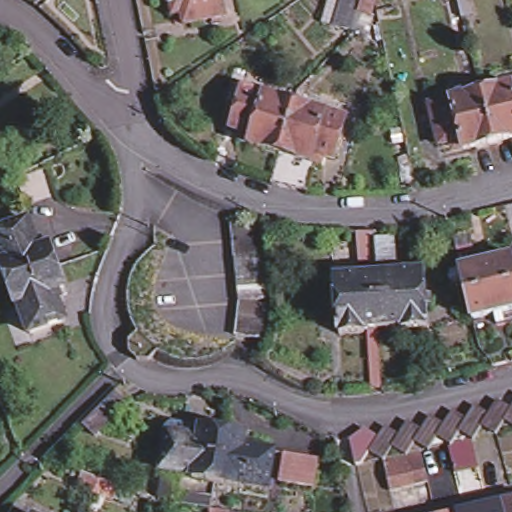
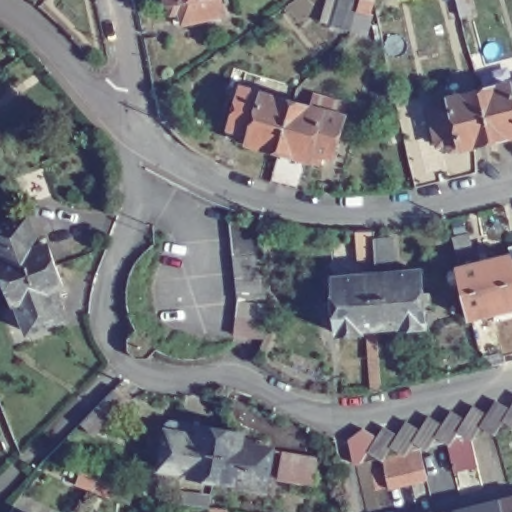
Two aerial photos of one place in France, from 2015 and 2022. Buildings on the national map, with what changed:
unchanged [(167,1),(166,0),(173,0),(167,1)]
unchanged [(222,12),(181,22),(176,0),(220,0),(222,12)]
unchanged [(352,34),(335,28),(345,0),(373,0),(372,3),(373,6),(370,16),(376,18),(369,39),(352,34)]
unchanged [(443,0),(466,0),(457,2),(445,5),(443,0)]
unchanged [(512,80),(512,133),(488,139),(475,89),(512,80)]
unchanged [(302,189),(287,184),(269,179),(277,152),(245,143),(248,133),(227,128),(237,86),(290,101),(340,115),(329,156),(308,150),(306,159),(310,161),(302,189)]
unchanged [(488,139),(458,147),(455,137),(435,143),(424,102),(475,89),(488,139)]
unchanged [(12,212),(22,241),(32,238),(40,259),(0,274),(0,216),(12,212)]
unchanged [(234,260),(232,241),(230,226),(262,222),(263,238),(265,256),(262,257),(262,272),(264,287),(265,302),(237,303),(237,290),(235,275),(234,260)]
unchanged [(468,237),(471,249),(457,252),(454,240),(468,237)]
unchanged [(360,340),(335,342),(329,288),(372,284),(372,269),(357,269),(355,239),(361,239),(372,238),(372,247),(390,247),(394,282),(418,279),(424,334),(399,337),(399,332),(379,335),(372,335),(360,337),(360,340)]
unchanged [(40,259),(47,279),(37,283),(47,314),(13,326),(2,296),(0,297),(0,274),(40,259)]
unchanged [(449,283),(450,279),(451,277),(460,275),(512,262),(512,264),(512,288),(466,300),(463,289),(455,291),(450,289),(450,286),(449,283)]
unchanged [(512,288),(512,315),(472,326),(466,300),(512,288)]
unchanged [(236,322),(237,305),(267,308),(266,324),(265,341),(244,338),(235,338),(236,322)]
unchanged [(127,333),(137,327),(149,329),(157,339),(157,352),(152,356),(148,361),(137,362),(125,355),(123,345),(127,333)]
unchanged [(130,404),(95,438),(84,427),(117,392),(130,404)]
unchanged [(425,428),(434,415),(447,423),(455,410),(470,419),(479,404),(492,412),(501,399),(512,406),(512,420),(509,418),(500,432),(487,423),(477,436),(465,429),(455,442),(442,434),(434,447),(432,448),(420,440),(411,453),(398,444),(388,459),(374,450),(367,464),(362,465),(355,435),(374,430),(382,437),(390,426),(402,433),(412,421),(425,428)]
unchanged [(182,481),(183,478),(152,473),(157,437),(189,442),(191,429),(212,433),(203,485),(182,481)]
unchanged [(212,433),(235,436),(232,449),(264,454),(257,490),(227,485),(227,488),(203,485),(212,433)]
unchanged [(457,470),(451,443),(455,442),(477,436),(483,466),(457,470)]
unchanged [(430,481),(417,483),(393,489),(392,481),(388,459),(411,453),(424,450),(428,472),(430,481)]
unchanged [(302,486),(270,481),(274,451),(307,456),(302,486)]
unchanged [(93,493),(78,487),(82,475),(97,482),(112,488),(108,499),(93,493)]
unchanged [(512,492),(512,512),(505,512),(502,494),(512,492)]
unchanged [(483,512),(480,500),(502,494),(505,512),(483,512)]
unchanged [(206,512),(193,510),(195,500),(210,502),(224,503),(222,512),(206,512)]
unchanged [(460,512),(459,505),(480,500),(483,512),(460,512)]
unchanged [(436,512),(436,511),(459,505),(460,512),(436,512)]
unchanged [(432,512),(436,511),(436,512),(432,512)]

